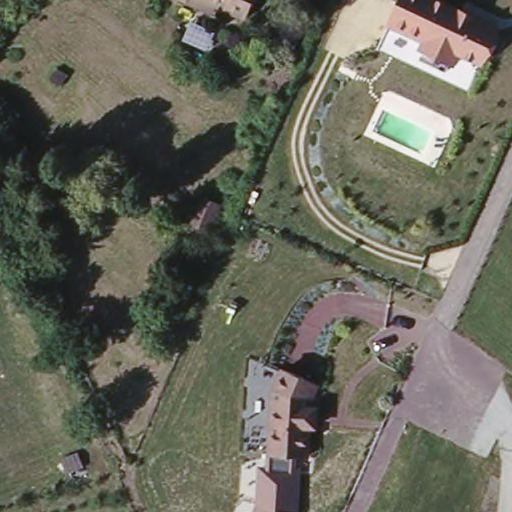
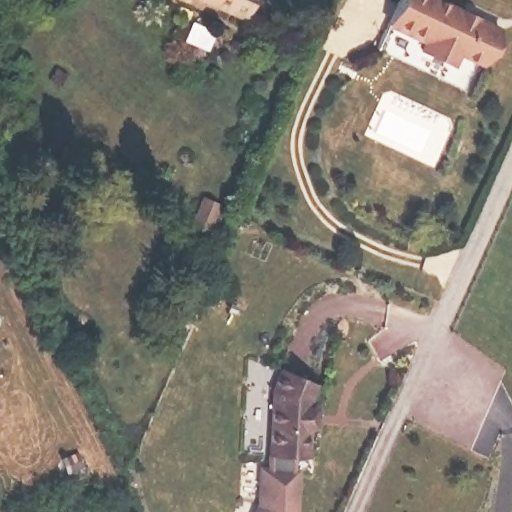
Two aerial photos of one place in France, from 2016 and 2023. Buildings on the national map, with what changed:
unchanged [(175,0),(248,0),(241,18),(213,5),(210,17),(183,4),(175,0)]
unchanged [(460,55),(454,67),(419,50),(423,39),(387,25),(398,0),(441,0),(500,26),(483,65),(460,55)]
unchanged [(268,391),(278,369),(317,384),(309,408),(318,409),(317,431),(307,431),(307,457),(264,458),(268,391)]
unchanged [(257,505),(259,465),(266,467),(266,458),(301,457),(300,512),(254,512),(257,505)]

